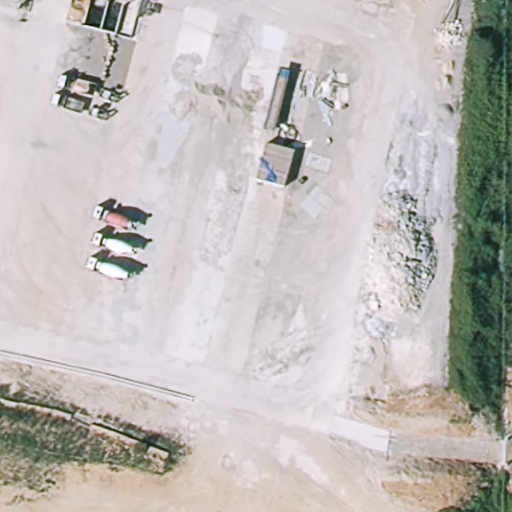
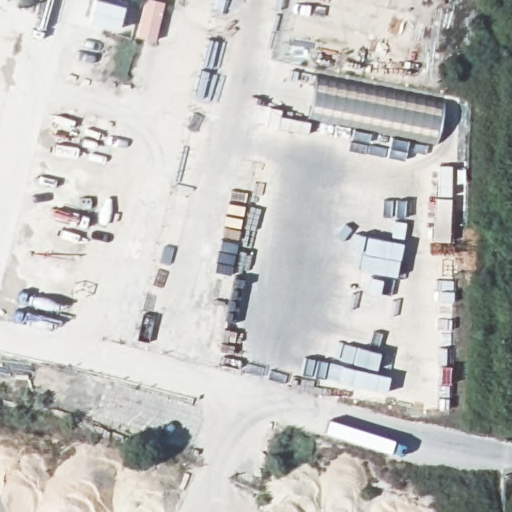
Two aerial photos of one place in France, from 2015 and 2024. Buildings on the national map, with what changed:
new [(434,141),(334,122),(336,114),(310,107),(316,76),(400,95),(401,91),(441,99),(438,124),(434,141)]

